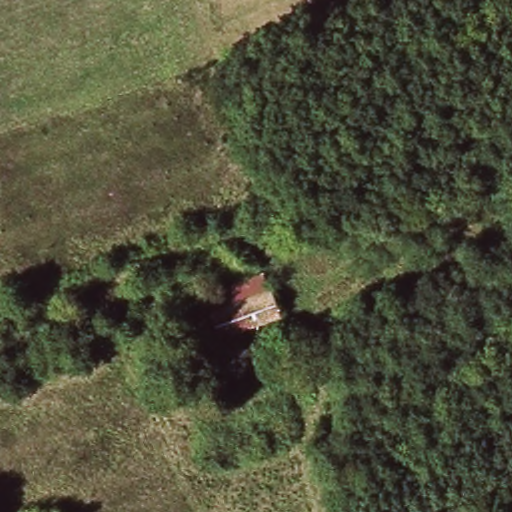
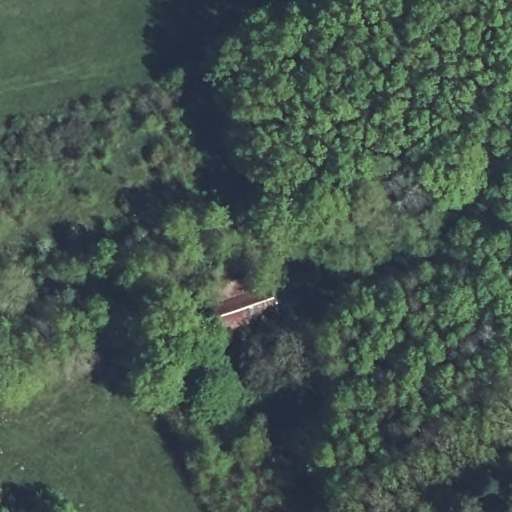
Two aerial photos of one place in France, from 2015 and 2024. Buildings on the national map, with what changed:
unchanged [(213,290),(272,270),(277,285),(290,315),(228,336),(219,307),(213,290)]

